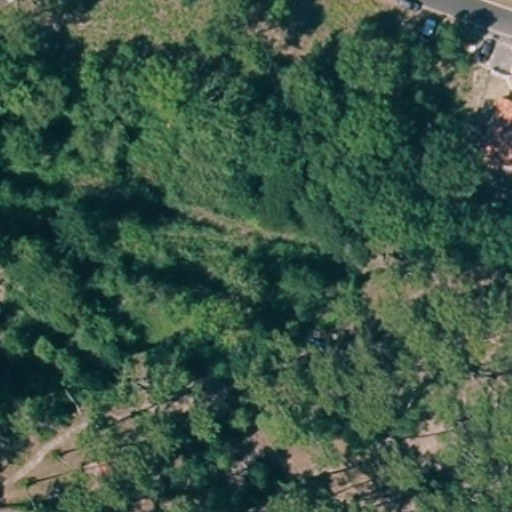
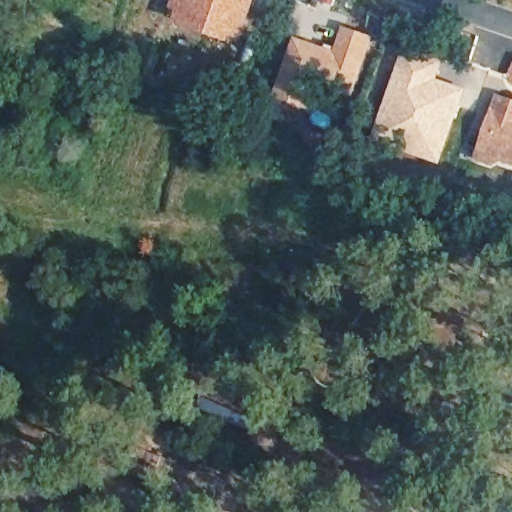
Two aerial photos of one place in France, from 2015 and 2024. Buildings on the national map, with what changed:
new [(174,24),(178,11),(170,7),(173,0),(257,0),(241,47),(174,24)]
new [(323,57),(325,51),(337,56),(345,38),(370,49),(347,102),(313,87),(302,111),(272,98),(296,45),(323,57)]
new [(405,45),(445,57),(438,78),(466,88),(440,166),(371,142),(405,45)]
unchanged [(479,155),(497,95),(512,99),(512,166),(479,155)]

